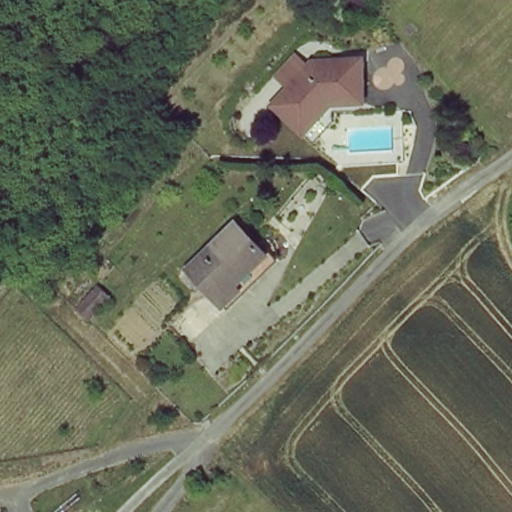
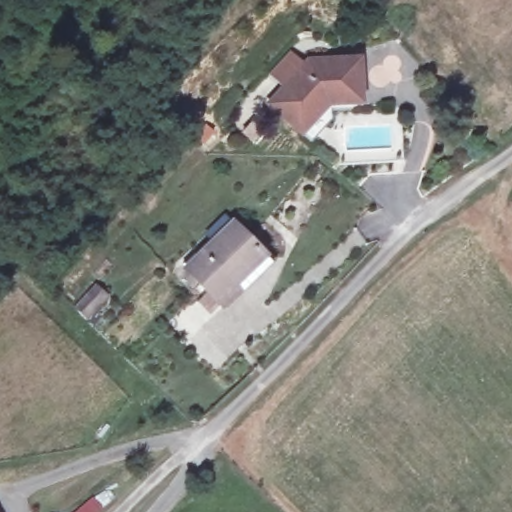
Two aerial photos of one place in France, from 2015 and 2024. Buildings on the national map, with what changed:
unchanged [(353,65),(353,108),(313,108),(313,119),(293,140),(263,110),(305,65),(353,65)]
unchanged [(268,257),(218,304),(189,274),(238,226),(268,257)]
unchanged [(95,287),(105,294),(85,317),(72,306),(95,287)]

